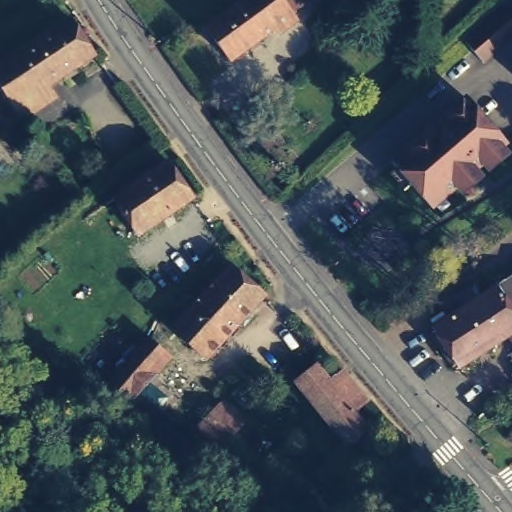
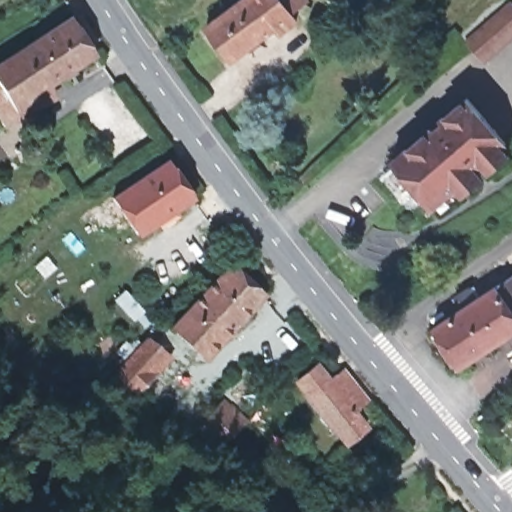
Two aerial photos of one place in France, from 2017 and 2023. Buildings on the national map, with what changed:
unchanged [(209,23),(240,0),(292,0),(303,12),(299,14),(294,9),(234,55),(209,23)]
unchanged [(466,42),(512,2),(512,38),(483,62),(466,42)]
unchanged [(68,15),(92,51),(13,101),(20,112),(18,114),(0,86),(0,59),(68,15)]
unchanged [(510,143),(433,209),(394,165),(434,130),(435,131),(445,123),(444,121),(471,99),(510,143)]
unchanged [(191,193),(137,231),(113,194),(164,156),(191,193)]
unchanged [(262,289),(204,355),(171,325),(228,259),(262,289)]
unchanged [(512,268),(512,328),(459,363),(431,322),(462,301),(459,298),(474,289),(477,291),(512,268)]
unchanged [(148,332),(165,351),(127,394),(108,377),(148,332)]
unchanged [(293,377),(313,361),(326,378),(339,365),(349,375),(316,403),(293,377)]
unchanged [(364,395),(353,408),(364,423),(346,440),(316,403),(349,375),(364,395)]
unchanged [(194,422),(193,422),(217,399),(236,418),(221,436),(194,422)]

